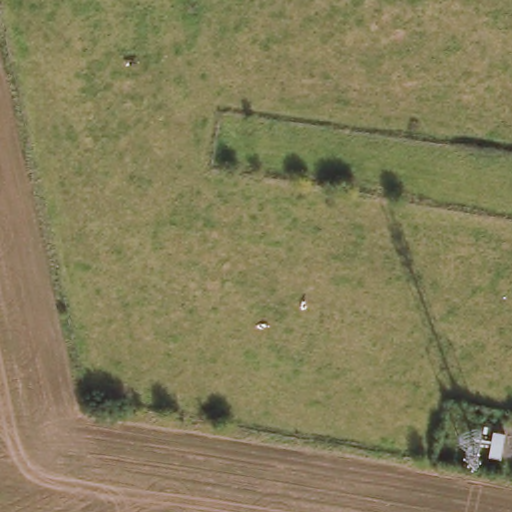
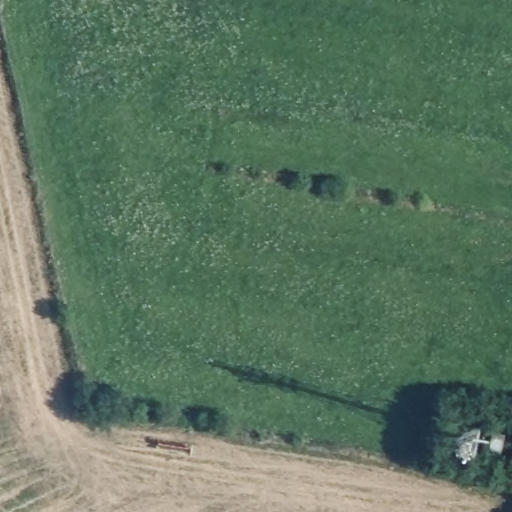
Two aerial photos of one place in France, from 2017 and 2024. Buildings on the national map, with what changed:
unchanged [(486,455),(490,430),(505,431),(502,458),(486,455)]

